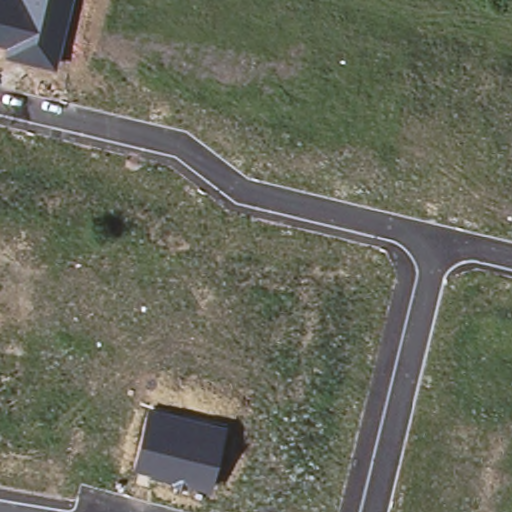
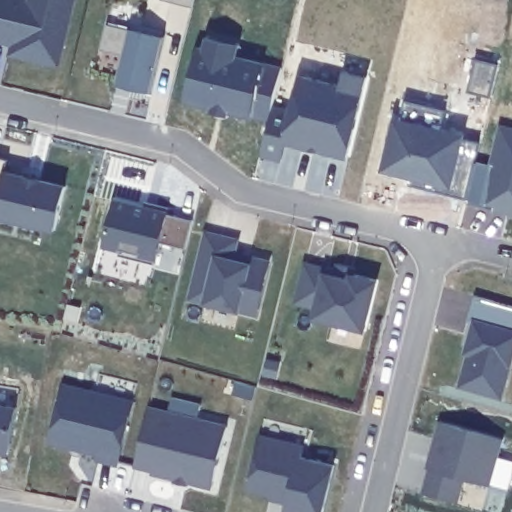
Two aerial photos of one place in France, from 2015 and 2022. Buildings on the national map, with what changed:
unchanged [(58,64),(6,51),(8,42),(0,40),(0,0),(74,0),(58,64)]
new [(193,7),(163,0),(195,0),(193,7)]
new [(107,25),(165,37),(153,92),(116,84),(123,55),(101,49),(107,25)]
new [(269,122),(251,117),(230,112),(230,116),(210,112),(211,108),(185,102),(198,46),(204,47),(207,36),(242,44),(240,56),(282,67),(269,122)]
new [(496,66),(490,97),(467,93),(473,61),(496,66)]
new [(269,122),(272,107),(287,111),(297,78),(339,88),(342,71),(366,76),(346,163),(285,148),(280,166),(258,160),(269,122)]
new [(392,112),(465,132),(463,143),(479,145),(475,158),(465,198),(378,174),(392,112)]
new [(492,162),(501,124),(512,127),(512,208),(507,207),(509,198),(495,195),(493,205),(465,198),(475,158),(492,162)]
new [(68,185),(57,232),(0,219),(0,196),(0,194),(0,157),(8,158),(5,170),(68,185)]
new [(187,247),(163,242),(157,261),(102,247),(115,198),(170,211),(170,213),(193,219),(187,247)]
new [(240,238),(238,251),(272,259),(260,317),(187,300),(204,230),(240,238)]
new [(367,332),(313,319),(316,308),(293,303),(304,260),(335,267),(337,263),(357,267),(356,274),(381,280),(367,332)]
new [(458,386),(467,355),(464,354),(473,322),(470,320),(477,296),(512,306),(512,372),(505,400),(458,386)]
new [(131,401),(117,463),(100,458),(100,454),(50,442),(65,387),(93,393),(98,375),(137,383),(131,401)]
new [(17,407),(9,455),(0,454),(0,404),(17,407)]
unchanged [(191,481),(189,486),(173,482),(174,479),(151,473),(152,468),(135,464),(150,405),(227,423),(213,487),(191,481)]
new [(457,497),(423,488),(430,464),(427,463),(440,418),(501,436),(489,480),(482,504),(457,497)]
new [(302,456),(337,464),(325,512),(285,512),(288,504),(270,500),(270,496),(245,490),(260,435),(305,445),(302,456)]

